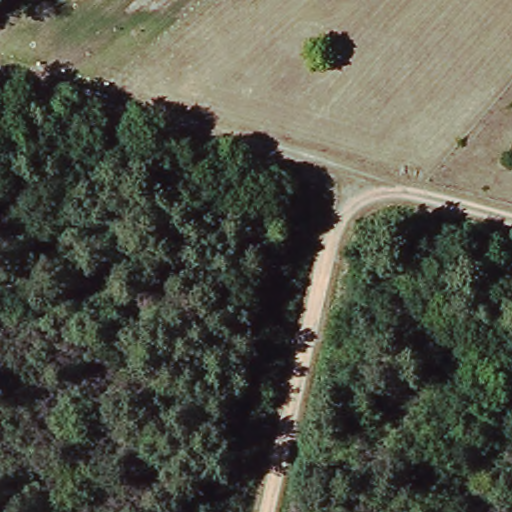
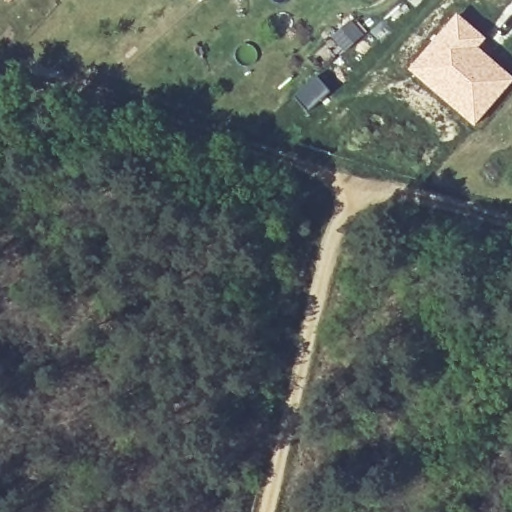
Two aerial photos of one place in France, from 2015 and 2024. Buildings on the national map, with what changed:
new [(456,13),(486,38),(478,47),(512,77),(512,82),(474,126),(407,69),(456,13)]

